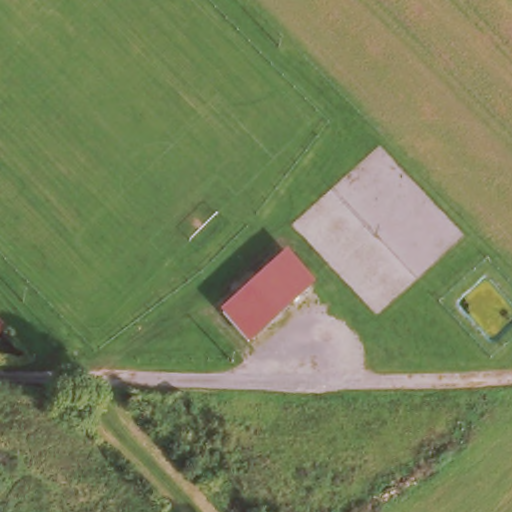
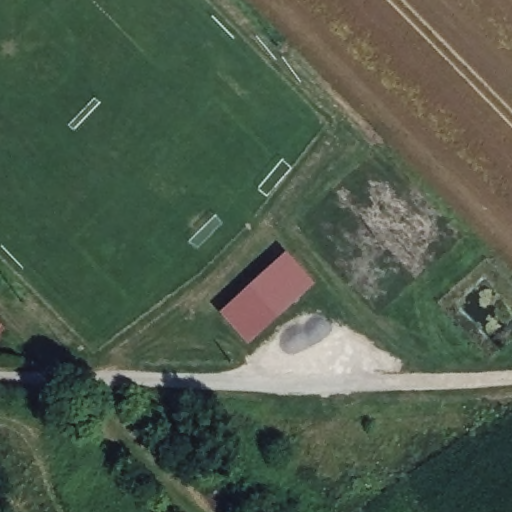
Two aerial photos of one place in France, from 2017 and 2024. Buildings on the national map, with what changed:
unchanged [(245,341),(216,310),(286,249),(311,280),(245,341)]
unchanged [(274,512),(225,512),(224,510),(252,485),(274,512)]

